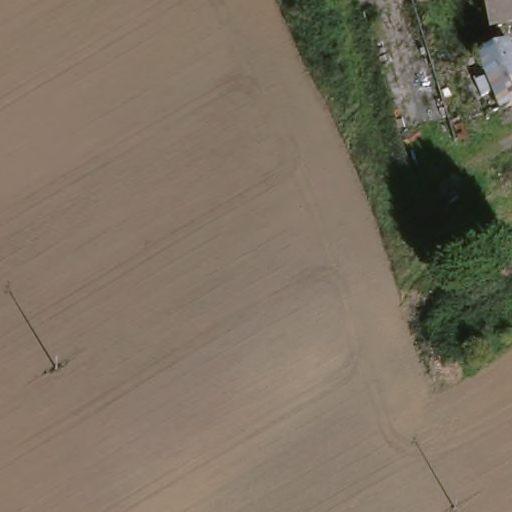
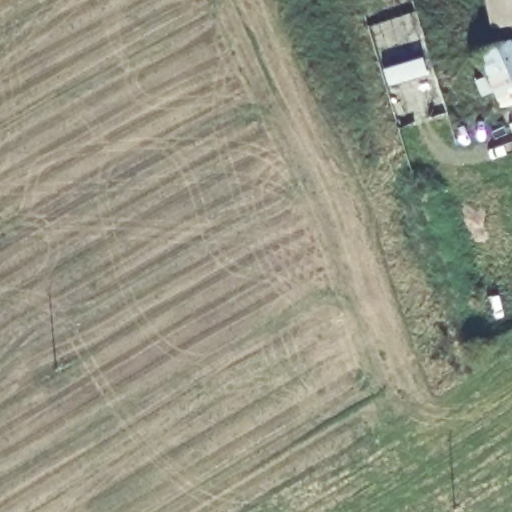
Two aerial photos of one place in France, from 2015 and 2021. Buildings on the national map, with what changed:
unchanged [(487,48),(481,22),(476,0),(512,0),(512,59),(505,39),(487,48)]
unchanged [(487,48),(505,39),(512,59),(512,102),(493,109),(472,54),(487,48)]

